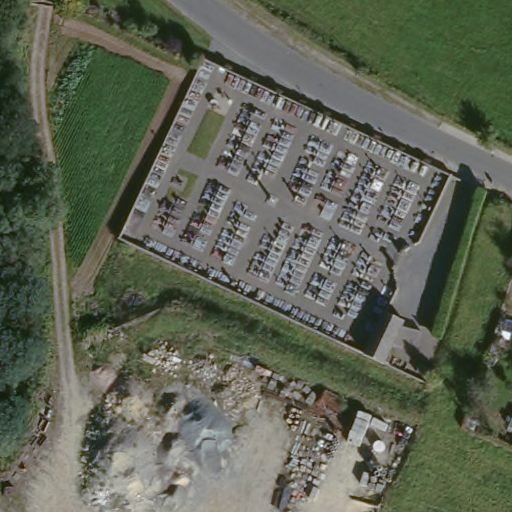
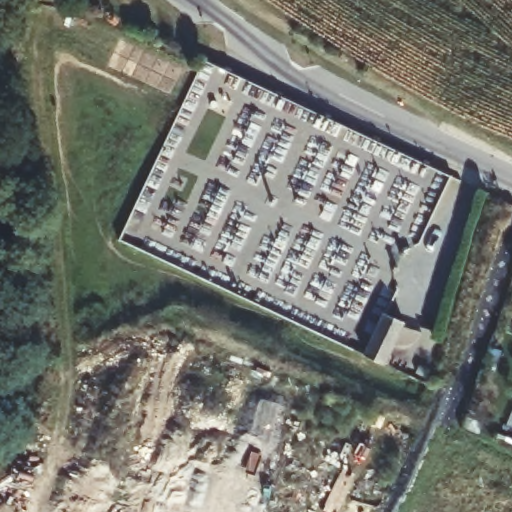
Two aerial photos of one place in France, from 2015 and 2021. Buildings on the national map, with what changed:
unchanged [(360,359),(383,315),(403,327),(382,370),(360,359)]
unchanged [(512,411),(499,439),(489,434),(481,430),(494,402),(499,405),(512,411)]

